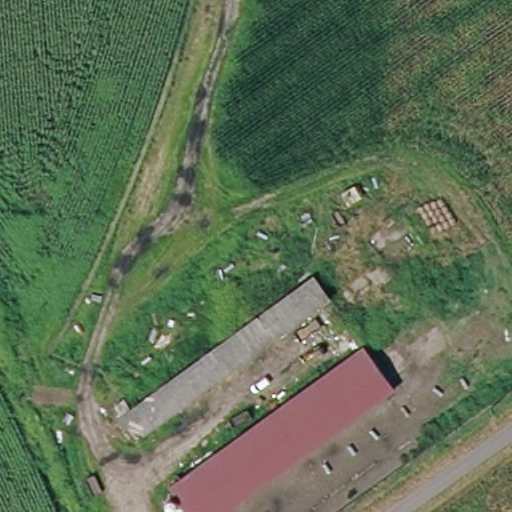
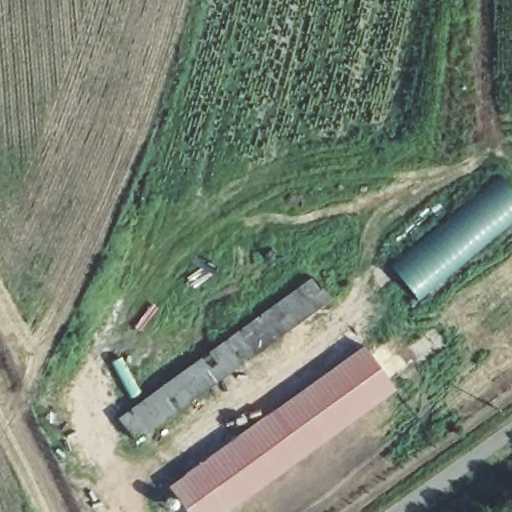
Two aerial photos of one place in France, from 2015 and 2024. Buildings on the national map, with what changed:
new [(398,250),(425,230),(497,169),(512,187),(512,226),(456,278),(421,307),(384,260),(398,250)]
unchanged [(322,301),(129,436),(113,417),(310,281),(322,301)]
unchanged [(363,346),(395,391),(225,512),(186,512),(167,485),(363,346)]

